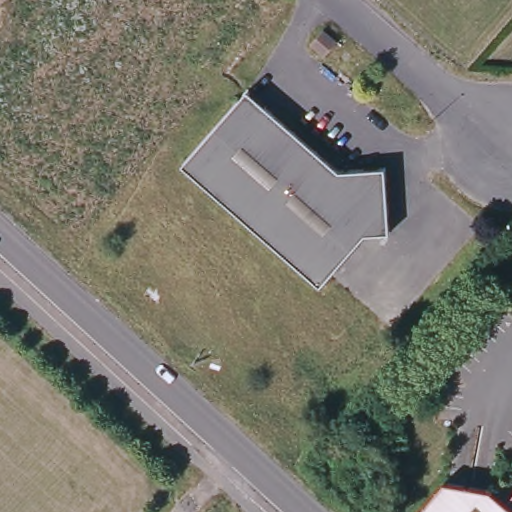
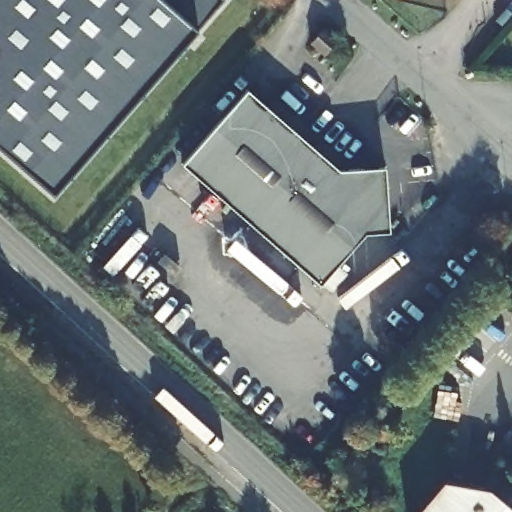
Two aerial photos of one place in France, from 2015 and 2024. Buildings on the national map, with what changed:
new [(55,192),(0,144),(0,0),(222,0),(195,28),(55,192)]
new [(340,47),(327,62),(310,48),(323,32),(340,47)]
unchanged [(246,90),(336,171),(383,167),(387,231),(360,234),(316,284),(181,163),(246,90)]
unchanged [(448,481),(496,494),(511,507),(512,506),(512,512),(422,512),(448,481)]

